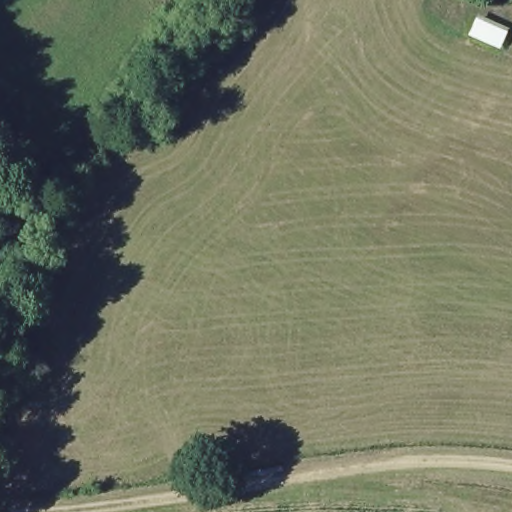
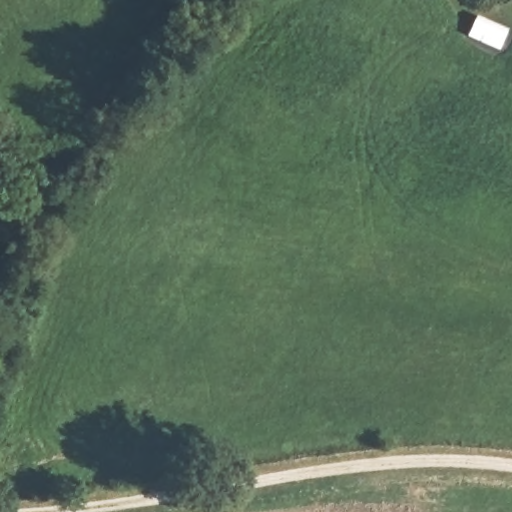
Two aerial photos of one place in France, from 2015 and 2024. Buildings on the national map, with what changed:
unchanged [(480,14),(512,28),(512,35),(506,51),(471,36),(480,14)]

